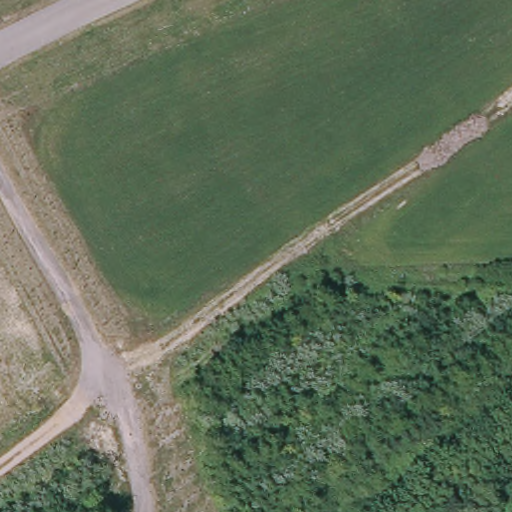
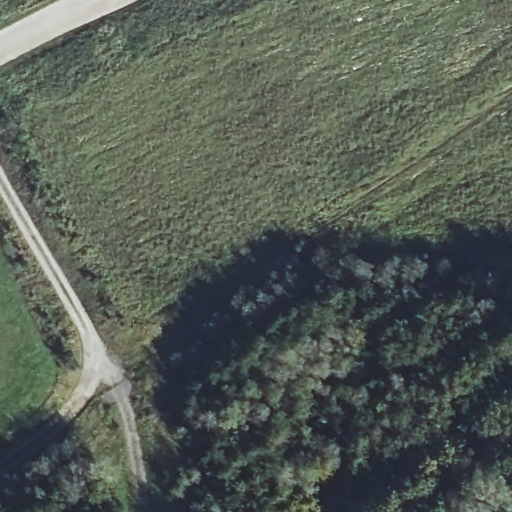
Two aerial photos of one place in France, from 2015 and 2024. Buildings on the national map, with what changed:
[]

